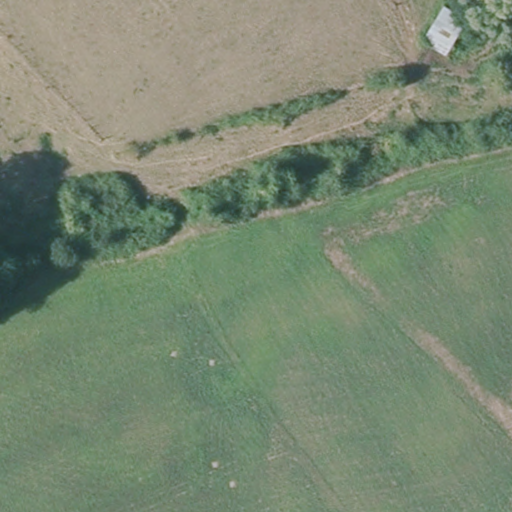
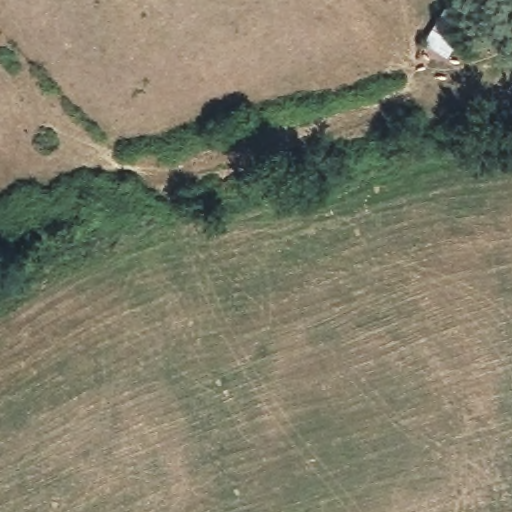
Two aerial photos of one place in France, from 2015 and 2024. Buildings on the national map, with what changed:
unchanged [(477,21),(453,57),(423,42),(450,6),(477,21)]

